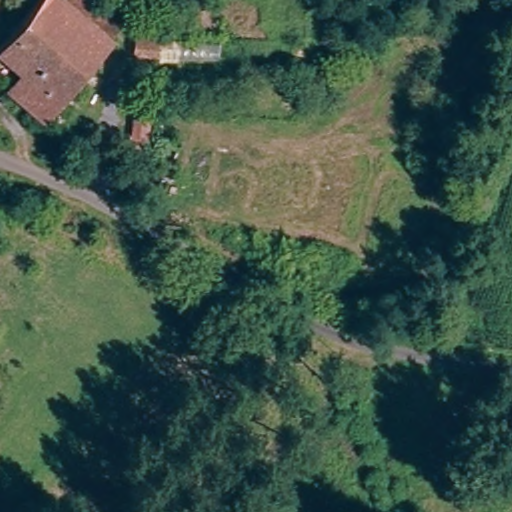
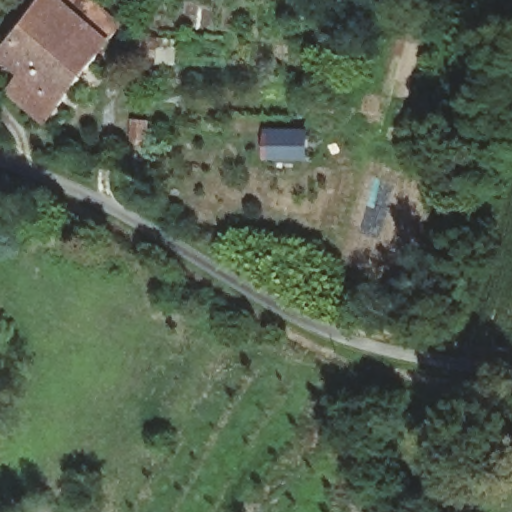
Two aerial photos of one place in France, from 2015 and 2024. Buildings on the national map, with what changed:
unchanged [(41,109),(10,79),(25,63),(2,41),(41,0),(72,0),(79,5),(84,0),(103,0),(127,23),(114,38),(63,96),(58,90),(41,109)]
new [(266,128),(307,128),(308,161),(266,160),(266,128)]

